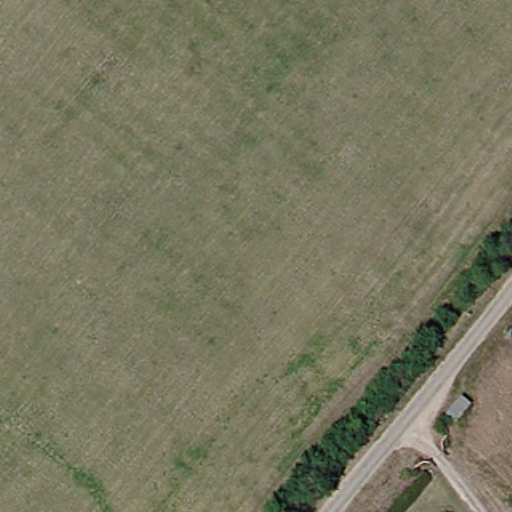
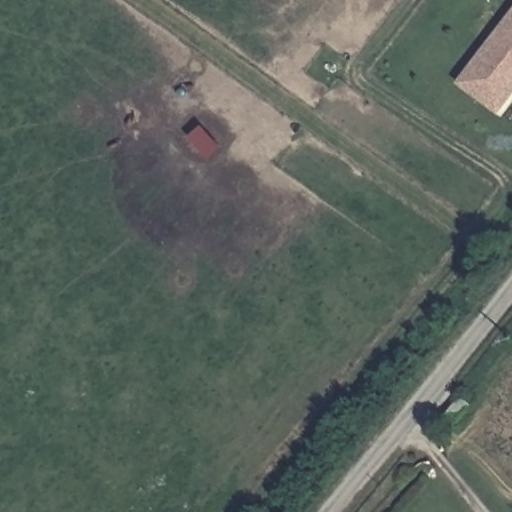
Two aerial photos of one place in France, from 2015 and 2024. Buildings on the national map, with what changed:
new [(512,97),(501,114),(458,82),(512,11),(512,97)]

